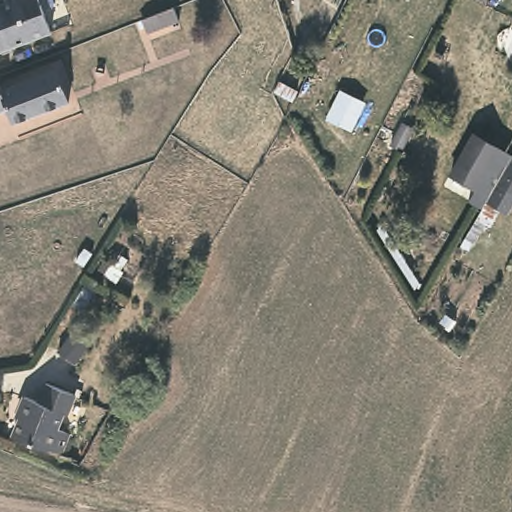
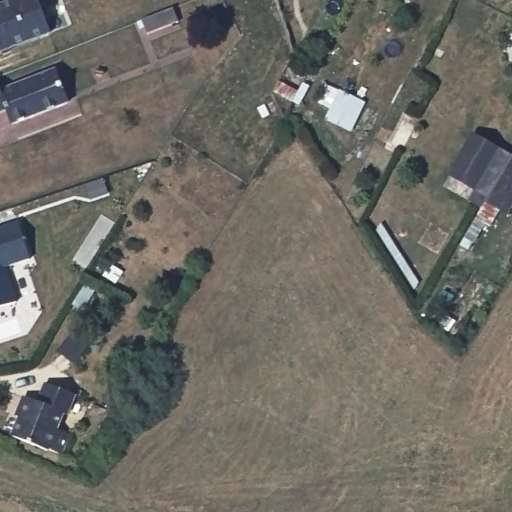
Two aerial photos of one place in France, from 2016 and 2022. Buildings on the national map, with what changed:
unchanged [(38,0),(49,30),(0,48),(0,2),(6,0),(38,0)]
unchanged [(179,23),(148,35),(142,21),(174,10),(179,23)]
unchanged [(68,104),(10,126),(5,110),(0,112),(0,90),(0,91),(55,71),(68,104)]
unchanged [(325,119),(339,91),(364,102),(350,131),(325,119)]
unchanged [(473,137),(488,146),(498,152),(479,184),(468,178),(453,169),(473,137)]
unchanged [(492,195),(492,194),(498,184),(512,161),(512,205),(511,205),(507,212),(488,201),(492,195)]
new [(0,307),(0,225),(18,219),(30,258),(6,266),(17,301),(0,307)]
unchanged [(76,327),(90,337),(85,342),(90,345),(74,362),(57,350),(76,327)]
unchanged [(74,397),(65,417),(61,416),(54,431),(65,437),(55,457),(44,451),(43,453),(7,436),(17,417),(13,415),(21,396),(36,402),(45,383),(74,397)]

